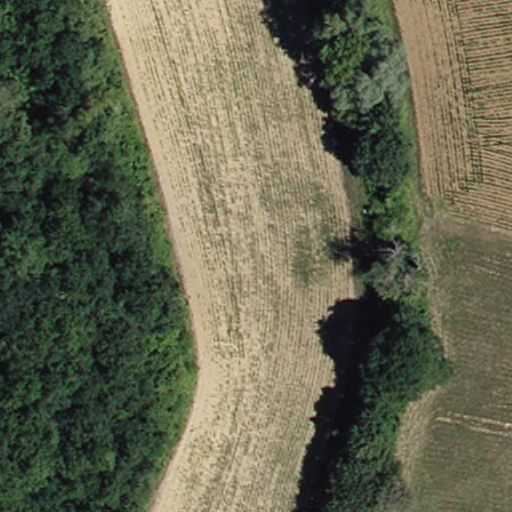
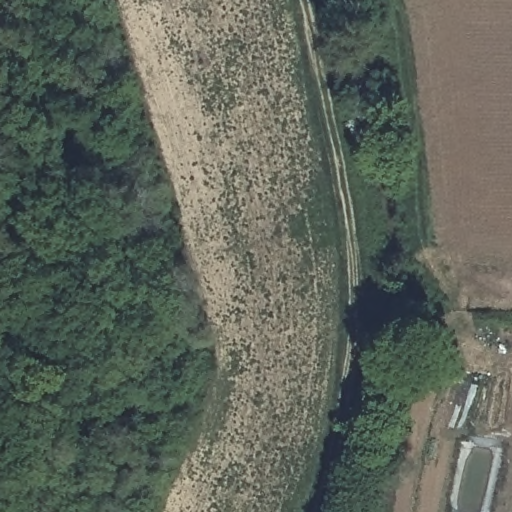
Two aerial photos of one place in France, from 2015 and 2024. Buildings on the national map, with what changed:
[]

